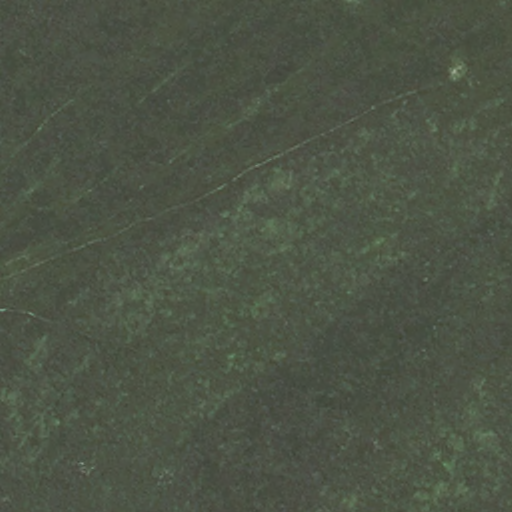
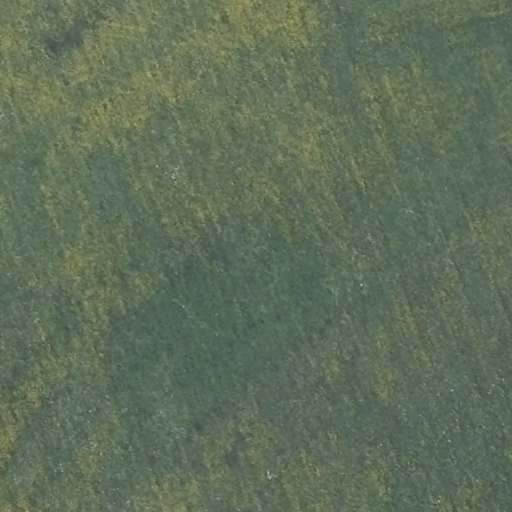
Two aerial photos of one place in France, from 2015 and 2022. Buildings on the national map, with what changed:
[]

